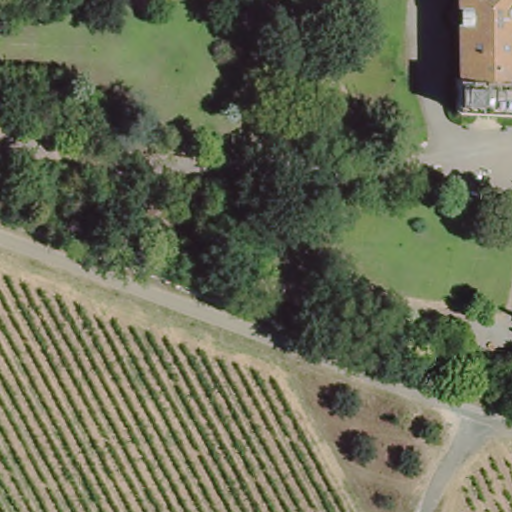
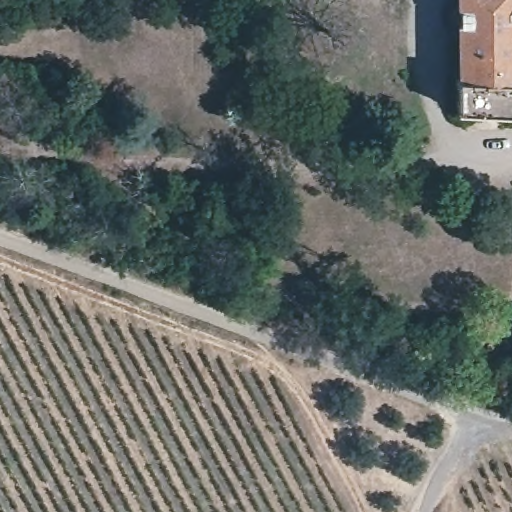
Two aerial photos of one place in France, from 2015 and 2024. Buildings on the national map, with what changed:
unchanged [(511,112),(451,112),(452,80),(458,80),(458,0),(512,0),(512,83),(511,112)]

